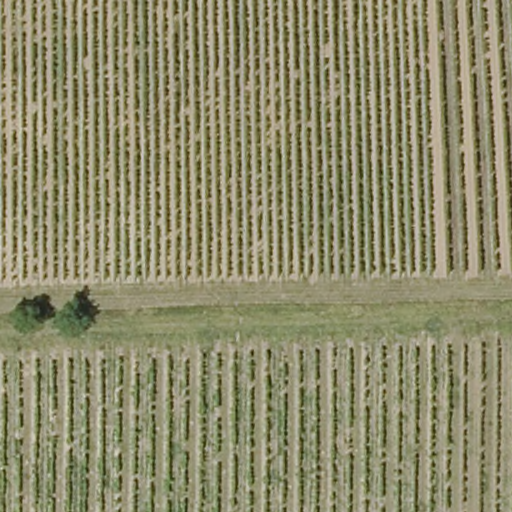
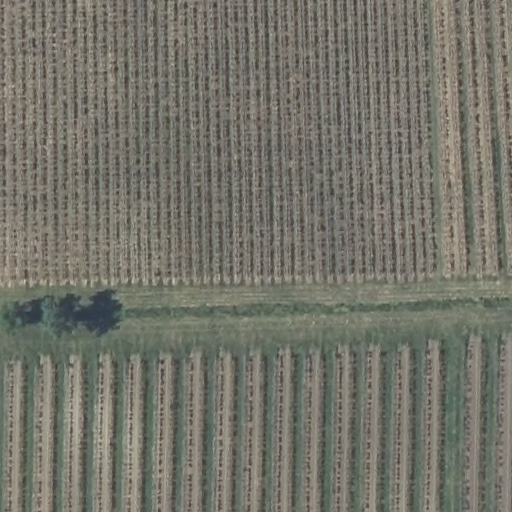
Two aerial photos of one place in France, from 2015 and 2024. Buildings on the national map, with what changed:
[]

